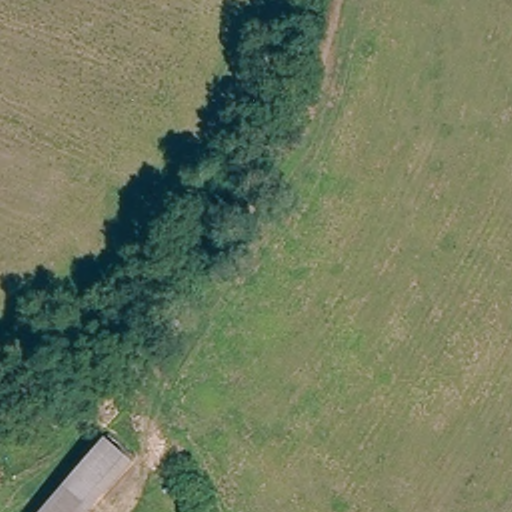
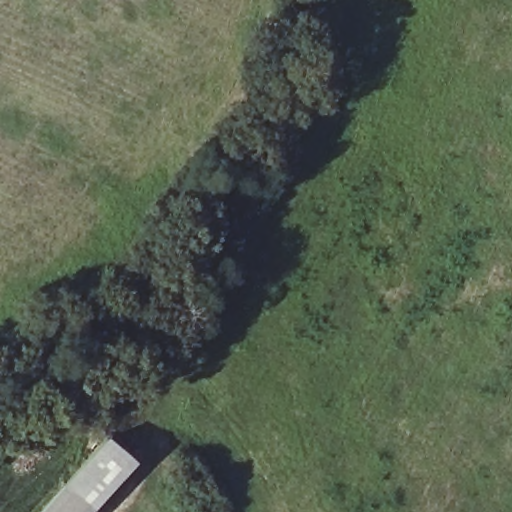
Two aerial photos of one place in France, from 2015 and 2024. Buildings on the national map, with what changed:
unchanged [(99,507),(94,512),(38,512),(70,477),(110,433),(140,461),(99,507)]

